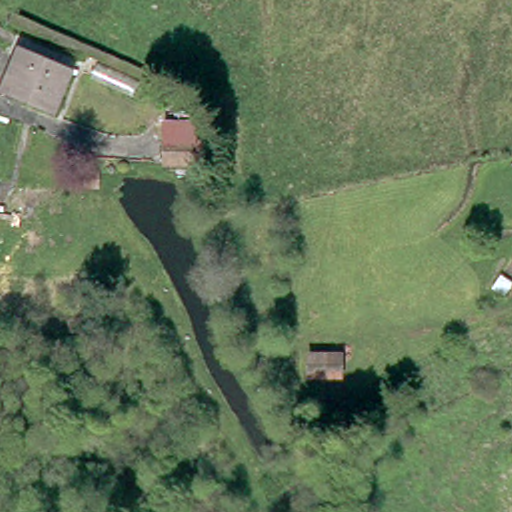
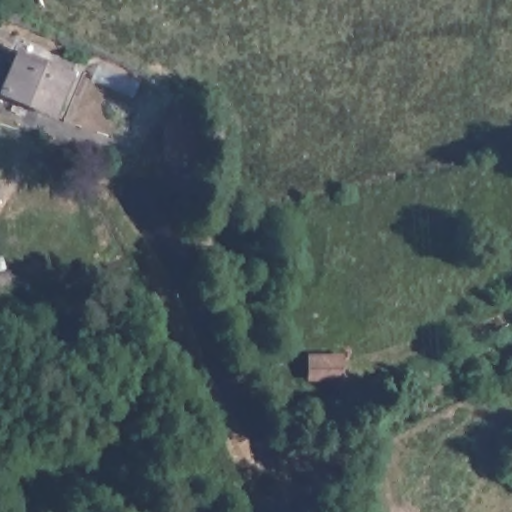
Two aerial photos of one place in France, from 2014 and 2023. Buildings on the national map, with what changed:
unchanged [(69,73),(51,112),(3,90),(21,51),(69,73)]
unchanged [(167,142),(201,141),(201,165),(170,167),(167,142)]
unchanged [(345,357),(346,380),(313,381),(312,358),(345,357)]

